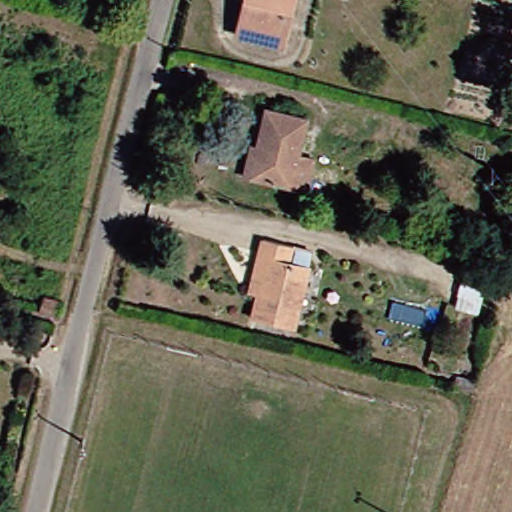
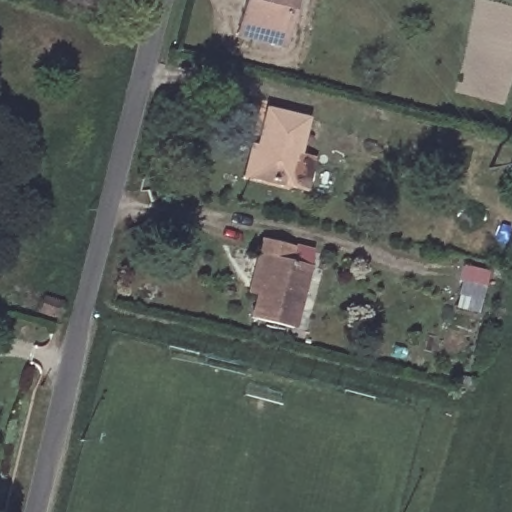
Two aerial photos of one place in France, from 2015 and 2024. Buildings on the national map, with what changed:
unchanged [(231,23),(237,0),(289,0),(284,15),(276,47),(246,39),(228,33),(231,23)]
unchanged [(238,142),(244,144),(254,106),(295,117),(286,153),(305,158),(297,187),(241,172),(231,170),(238,142)]
unchanged [(285,242),(281,258),(303,264),(286,325),(245,315),(252,287),(244,285),(252,251),(256,235),(285,242)]
unchanged [(42,294),(59,300),(54,316),(37,311),(42,294)]

